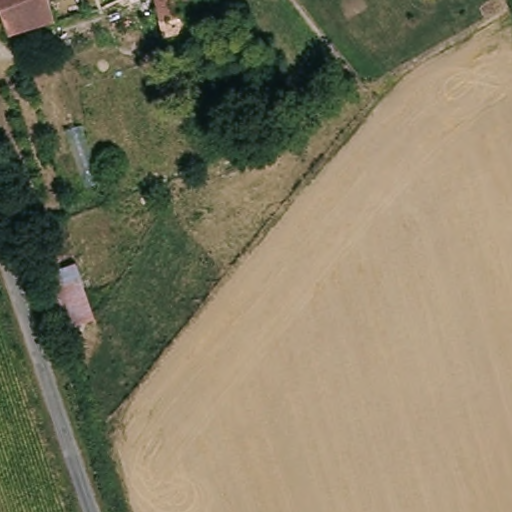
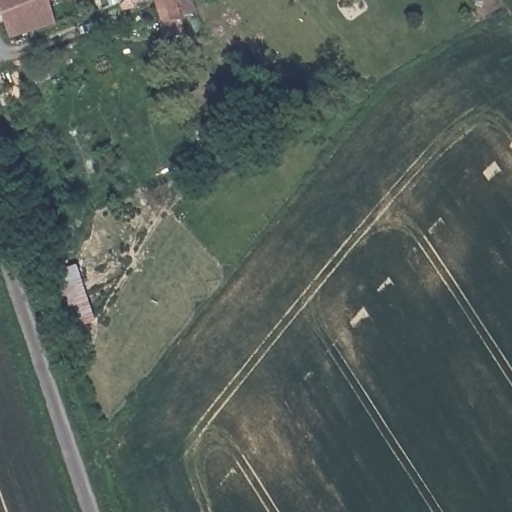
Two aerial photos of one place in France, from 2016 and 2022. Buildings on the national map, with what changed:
unchanged [(66,25),(12,38),(0,7),(0,0),(56,0),(62,17),(66,25)]
unchanged [(172,26),(163,0),(186,0),(192,19),(172,26)]
unchanged [(79,263),(97,323),(71,329),(55,273),(79,263)]

